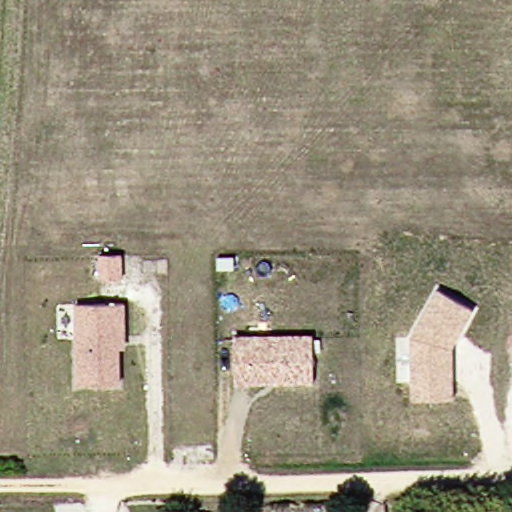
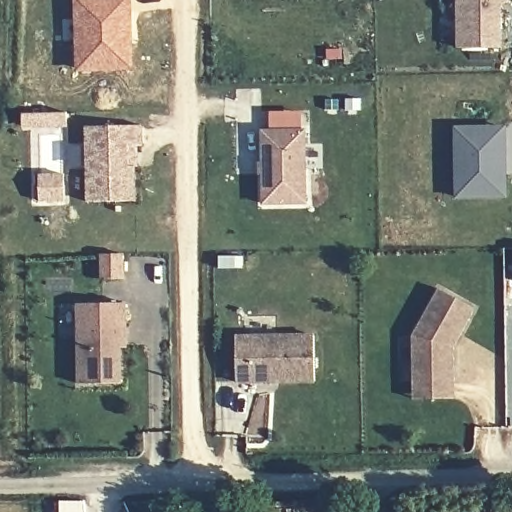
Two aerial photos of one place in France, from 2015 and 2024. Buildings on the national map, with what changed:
new [(132,0),(133,70),(76,71),(74,0),(132,0)]
new [(500,3),(500,48),(458,49),(458,0),(505,0),(505,2),(500,3)]
new [(141,146),(127,146),(128,167),(135,167),(136,200),(87,200),(86,126),(141,125),(141,146)]
new [(505,129),(505,175),(505,197),(456,198),(456,129),(495,129),(505,129)]
new [(260,131),(303,130),(303,203),(260,203),(260,173),(260,162),(260,131)]
new [(119,282),(99,282),(99,257),(119,257),(119,282)]
unchanged [(410,400),(410,383),(409,337),(436,290),(471,310),(456,336),(450,347),(450,382),(450,400),(410,400)]
unchanged [(79,387),(79,306),(125,306),(126,338),(126,348),(120,348),(120,386),(79,387)]
unchanged [(316,380),(237,381),(236,336),(315,335),(316,380)]

